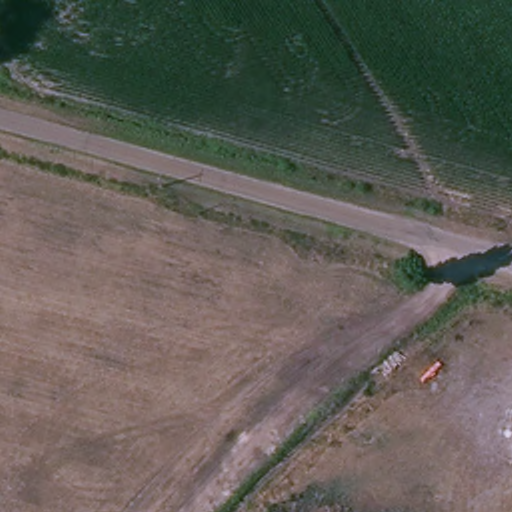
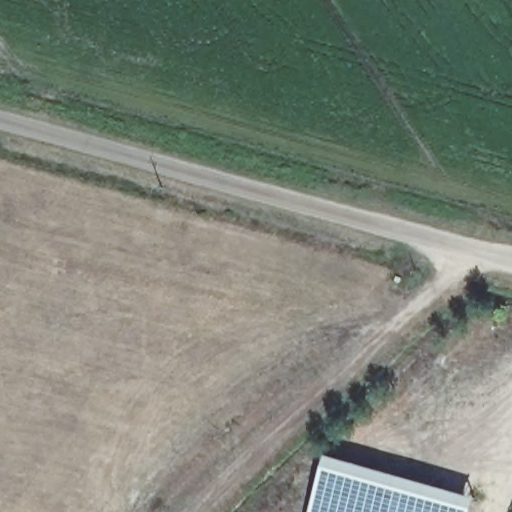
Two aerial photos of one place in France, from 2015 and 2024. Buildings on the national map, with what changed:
new [(326,466),(328,456),(478,497),(476,510),(475,512),(313,512),(326,466)]

